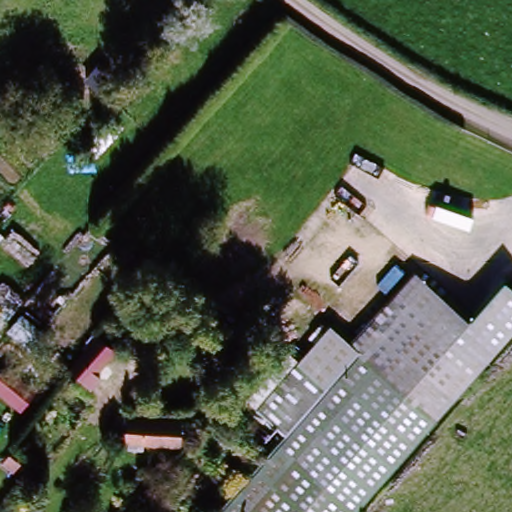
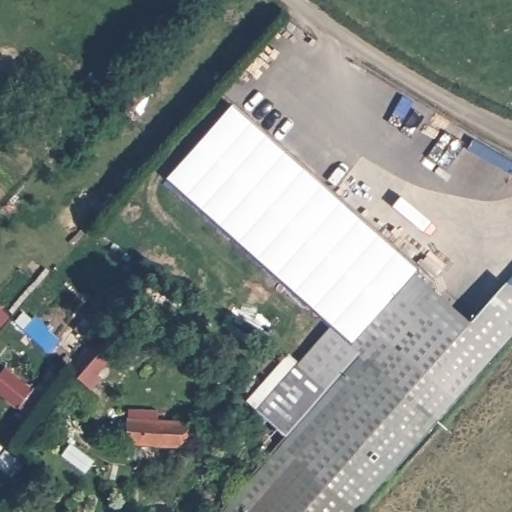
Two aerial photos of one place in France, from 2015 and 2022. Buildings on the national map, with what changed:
new [(352,343),(332,326),(167,180),(232,105),(417,270),(411,276),(352,343)]
unchanged [(285,436),(252,408),(297,359),(327,385),(357,348),(352,343),(411,276),(466,325),(507,280),(512,284),(512,337),(358,512),(219,512),(285,436)]
new [(14,277),(34,295),(0,331),(0,292),(14,277)]
new [(103,293),(117,306),(66,366),(59,360),(66,351),(58,346),(103,293)]
new [(332,326),(352,343),(357,348),(327,385),(300,362),(332,326)]
unchanged [(105,332),(122,346),(95,379),(79,366),(105,332)]
new [(8,369),(37,395),(22,413),(0,396),(0,378),(8,369)]
unchanged [(127,423),(140,422),(140,409),(160,410),(159,422),(182,421),(182,448),(178,448),(127,448),(127,423)]

